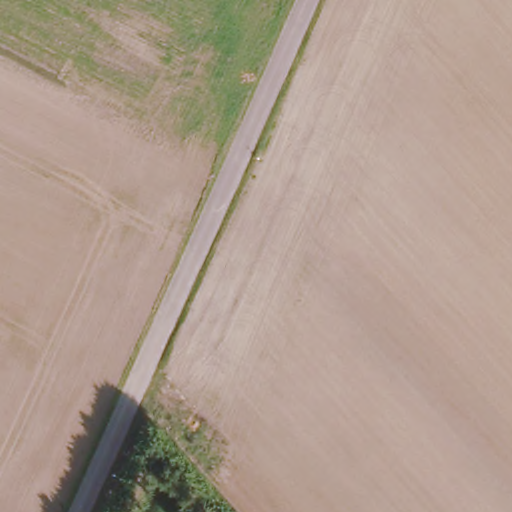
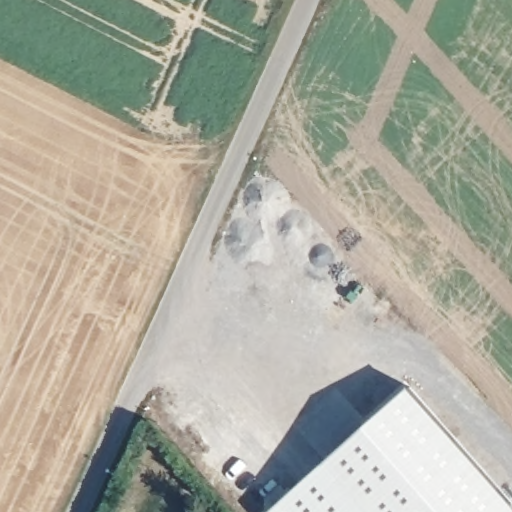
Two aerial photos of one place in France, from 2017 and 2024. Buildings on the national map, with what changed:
new [(512,512),(370,512),(325,462),(412,385),(512,498),(512,512)]
new [(370,512),(269,512),(325,462),(370,512)]

